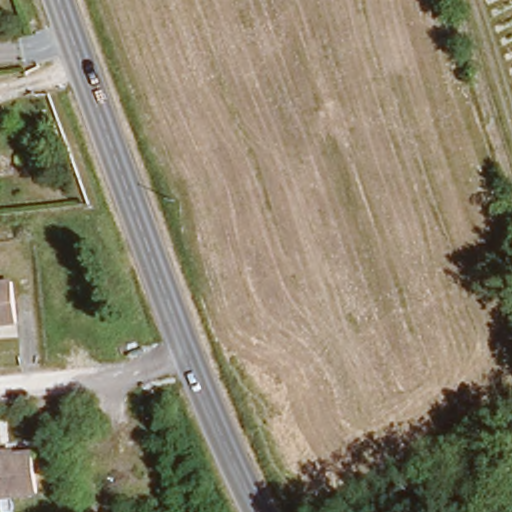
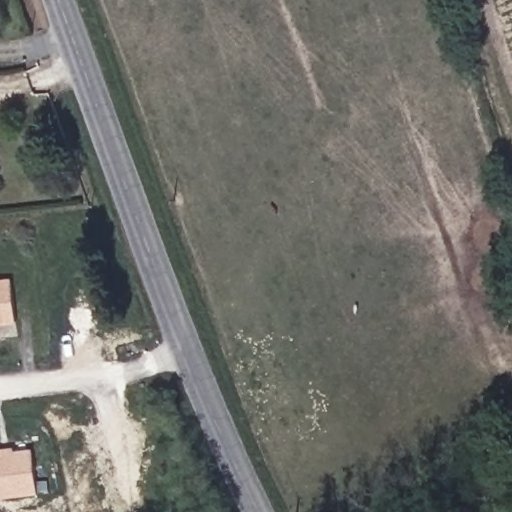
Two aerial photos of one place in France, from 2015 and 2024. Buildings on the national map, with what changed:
unchanged [(0,280),(11,279),(15,324),(0,325),(0,280)]
unchanged [(34,450),(37,494),(7,496),(0,496),(0,452),(2,452),(34,450)]

